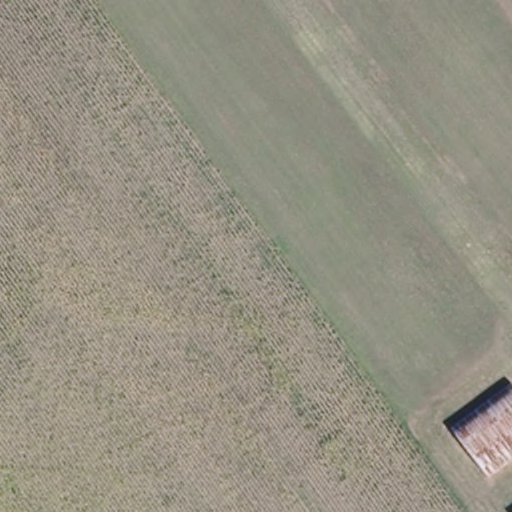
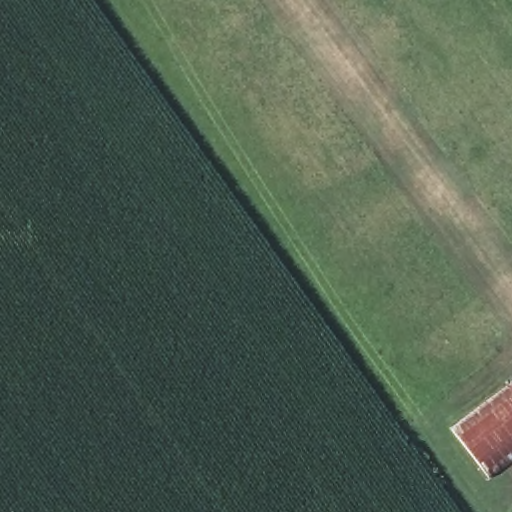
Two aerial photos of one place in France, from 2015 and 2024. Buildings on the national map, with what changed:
unchanged [(512,461),(490,476),(452,432),(512,388),(512,461)]

